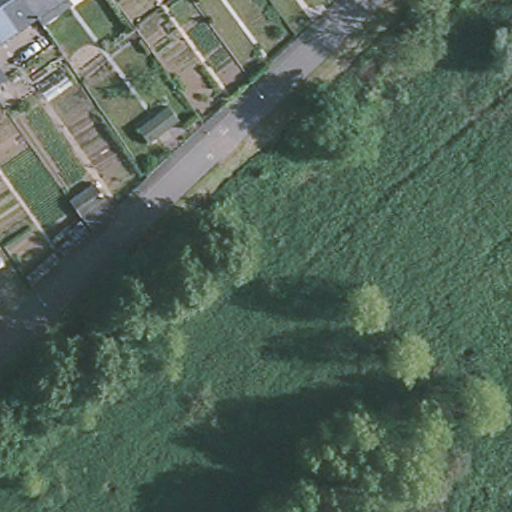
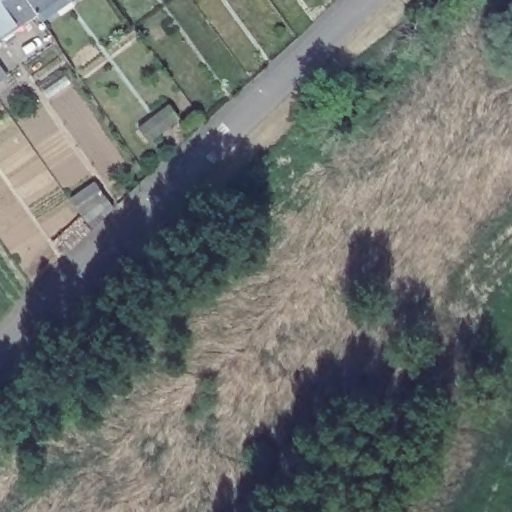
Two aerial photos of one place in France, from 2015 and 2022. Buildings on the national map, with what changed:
unchanged [(0,40),(0,0),(32,0),(40,13),(0,40)]
unchanged [(32,0),(59,0),(40,13),(32,0)]
unchanged [(168,107),(176,120),(146,141),(137,128),(168,107)]

